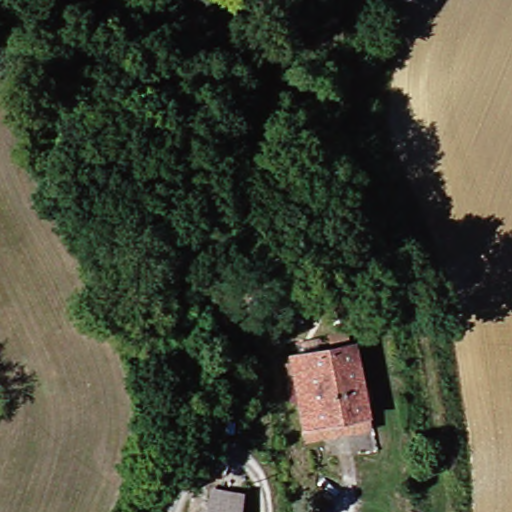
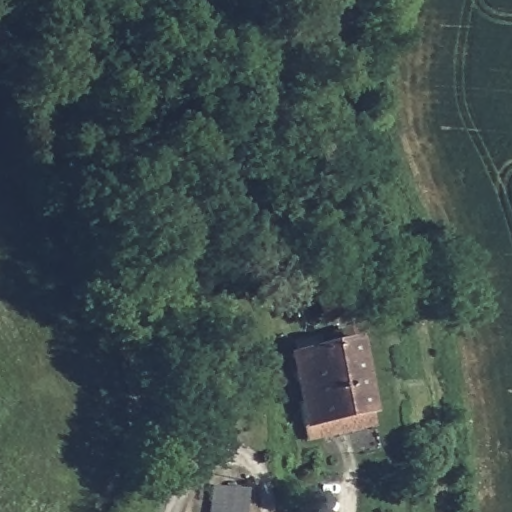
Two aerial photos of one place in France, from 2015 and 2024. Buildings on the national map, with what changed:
unchanged [(378,415),(305,429),(293,355),(363,343),(378,415)]
unchanged [(381,432),(310,447),(305,429),(378,415),(381,432)]
unchanged [(255,489),(253,512),(219,512),(222,485),(255,489)]

